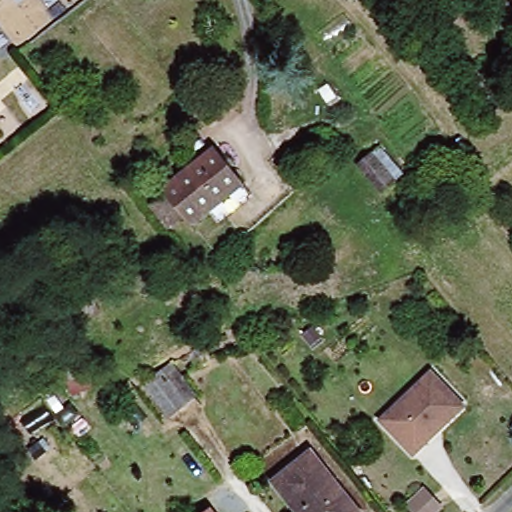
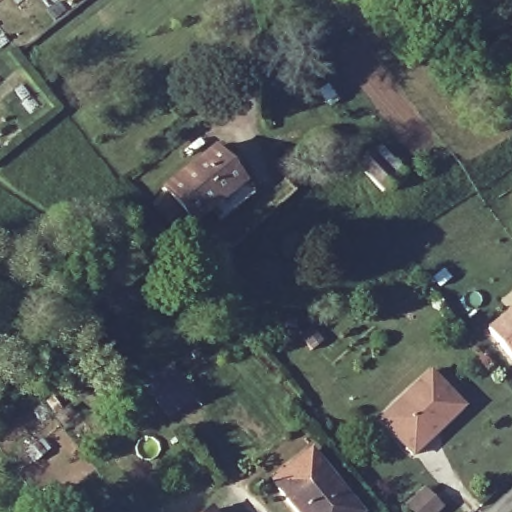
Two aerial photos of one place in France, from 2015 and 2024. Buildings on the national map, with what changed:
unchanged [(245,188),(197,229),(186,217),(176,227),(160,209),(172,196),(170,193),(214,154),(245,188)]
new [(512,309),(512,357),(489,327),(512,309)]
unchanged [(171,365),(194,392),(181,403),(169,412),(146,383),(157,374),(171,365)]
unchanged [(413,451),(386,418),(434,379),(457,407),(420,437),(425,442),(413,451)]
unchanged [(353,512),(299,512),(273,482),(310,452),(357,509),(353,512)]

